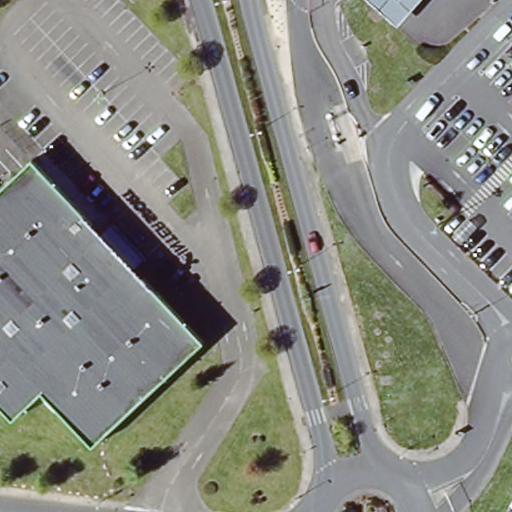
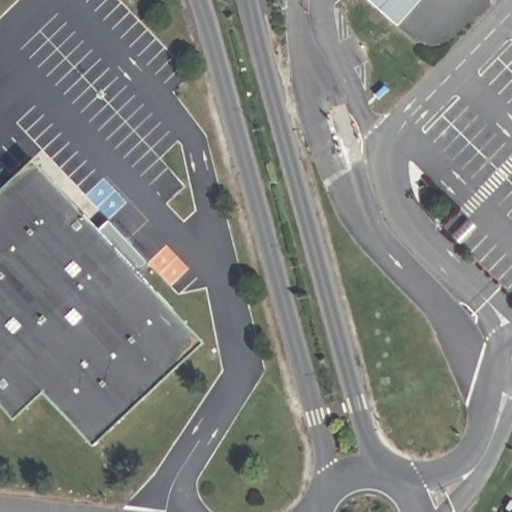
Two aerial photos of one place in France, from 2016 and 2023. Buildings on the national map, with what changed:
unchanged [(374,0),(429,0),(406,27),(374,0)]
unchanged [(115,226),(147,260),(136,270),(207,342),(96,451),(44,398),(14,427),(0,412),(0,190),(30,161),(35,166),(39,170),(104,237),(115,226)]

